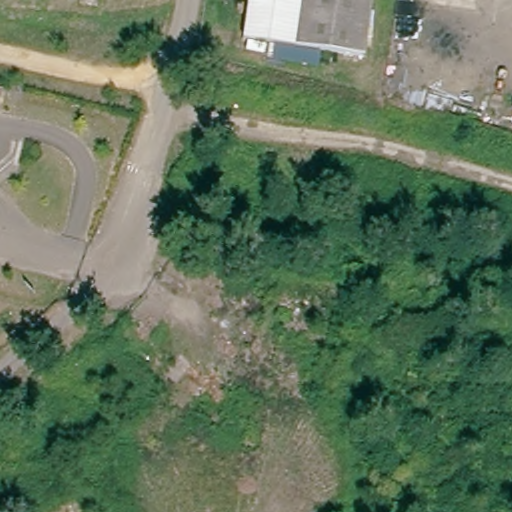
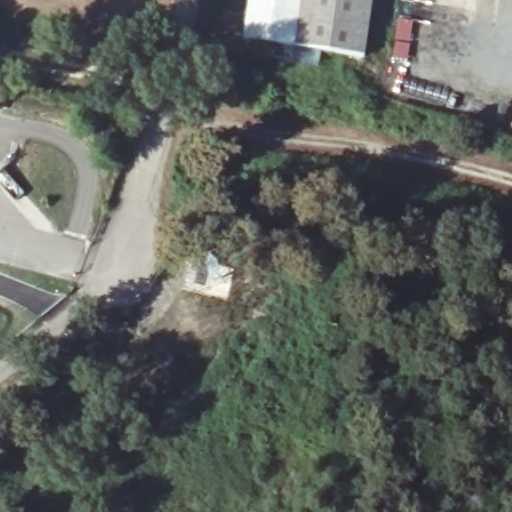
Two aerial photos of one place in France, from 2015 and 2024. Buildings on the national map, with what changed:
unchanged [(300,43),(249,35),(253,0),(376,0),(369,52),(300,43)]

